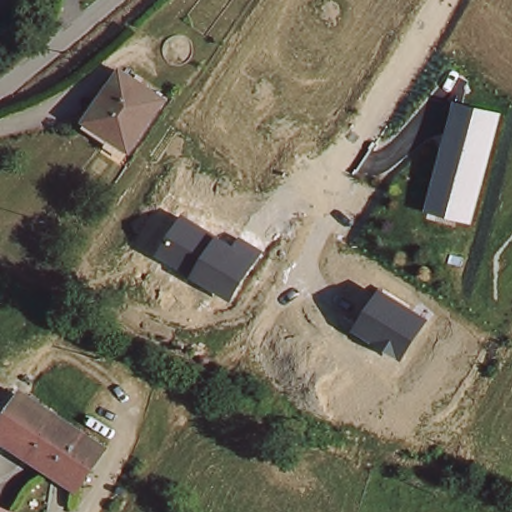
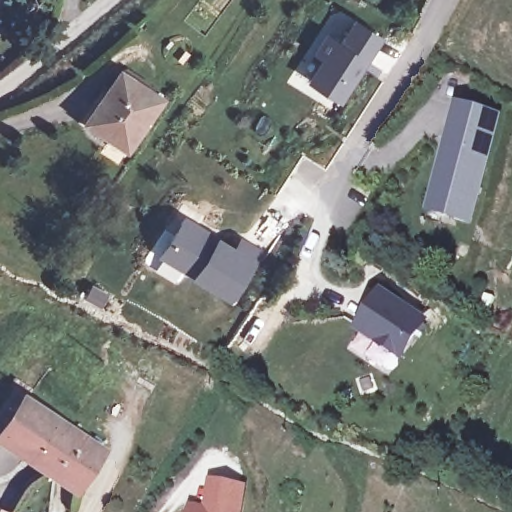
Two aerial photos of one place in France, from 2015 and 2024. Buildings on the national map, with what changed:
new [(325,30),(337,37),(352,17),(382,36),(340,103),(305,80),(320,56),(312,51),(325,30)]
unchanged [(157,101),(122,155),(80,125),(117,72),(157,101)]
unchanged [(502,114),(472,224),(424,212),(454,101),(502,114)]
unchanged [(233,248),(239,239),(262,252),(232,301),(158,258),(183,215),(233,248)]
unchanged [(430,319),(402,361),(354,331),(380,290),(430,319)]
unchanged [(22,408),(29,399),(60,422),(35,457),(2,433),(22,408)]
unchanged [(71,484),(55,472),(35,457),(60,422),(82,439),(96,449),(71,484)]
new [(208,478),(246,483),(241,512),(188,512),(190,504),(203,506),(208,478)]

